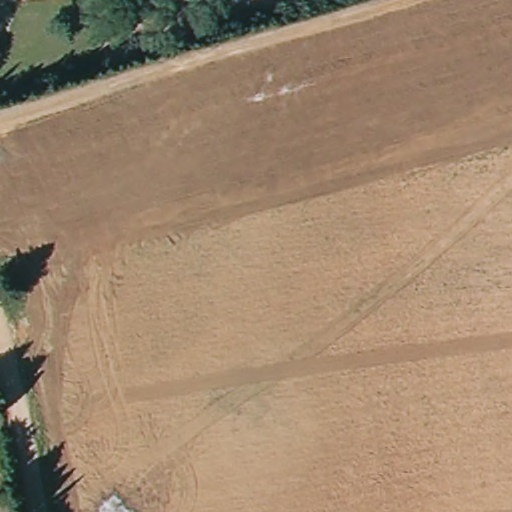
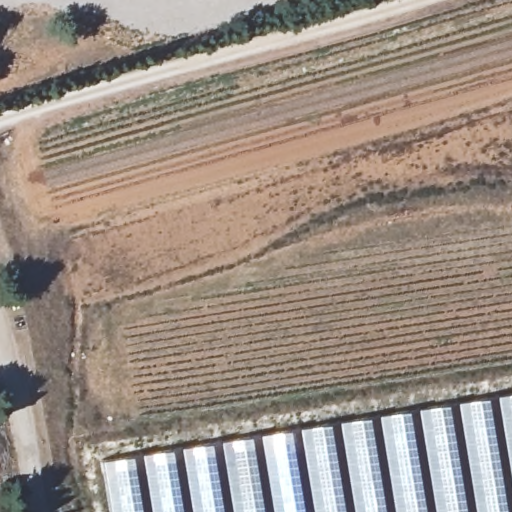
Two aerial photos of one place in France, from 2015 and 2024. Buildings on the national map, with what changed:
new [(100,460),(512,393),(512,512),(108,512),(100,460)]

